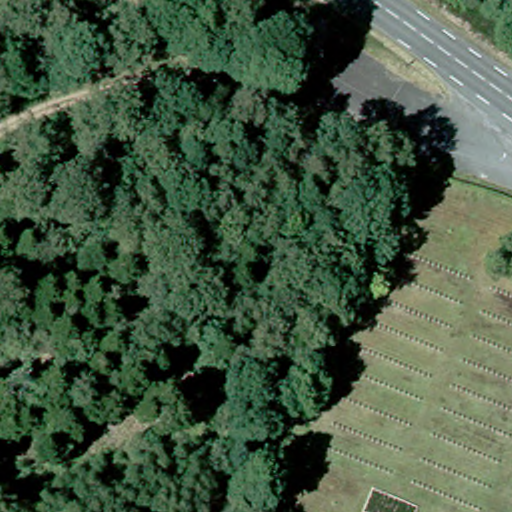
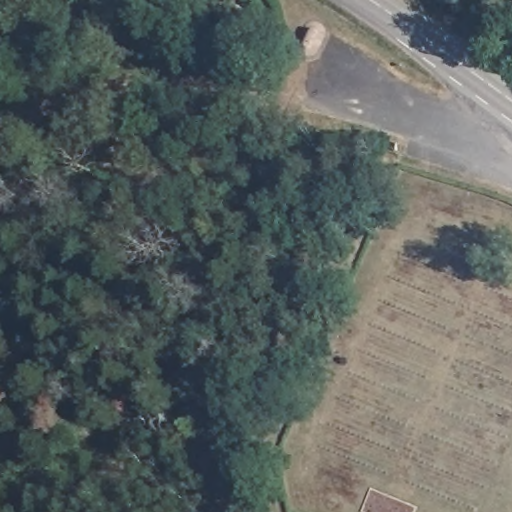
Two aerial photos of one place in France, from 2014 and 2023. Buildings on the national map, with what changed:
unchanged [(276,414),(301,426),(284,465),(259,453),(276,414)]

